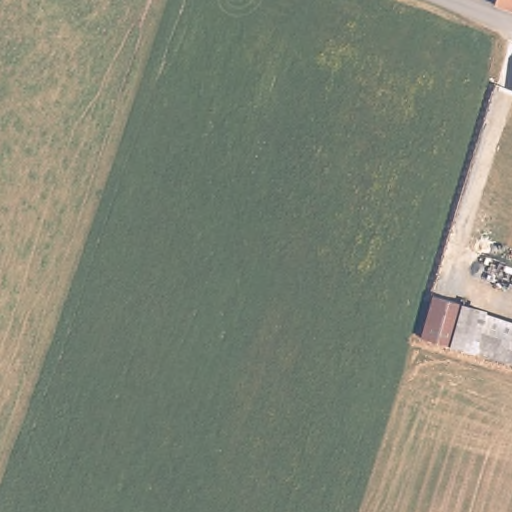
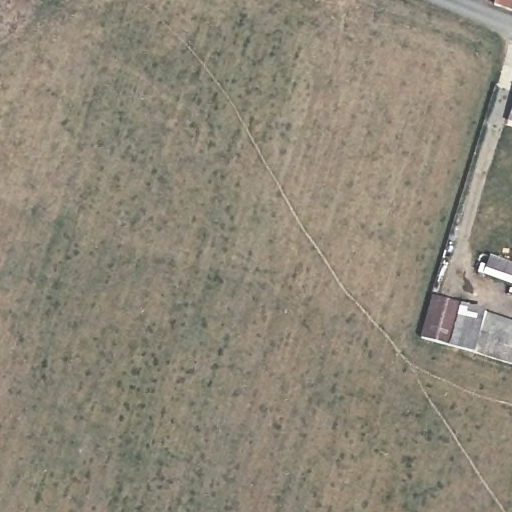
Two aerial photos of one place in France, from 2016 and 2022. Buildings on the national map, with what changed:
unchanged [(512,4),(501,0),(512,0),(512,4)]
unchanged [(477,336),(474,344),(472,354),(421,340),(431,294),(485,307),(479,326),(477,336)]
unchanged [(479,326),(512,337),(512,356),(474,344),(479,326)]

